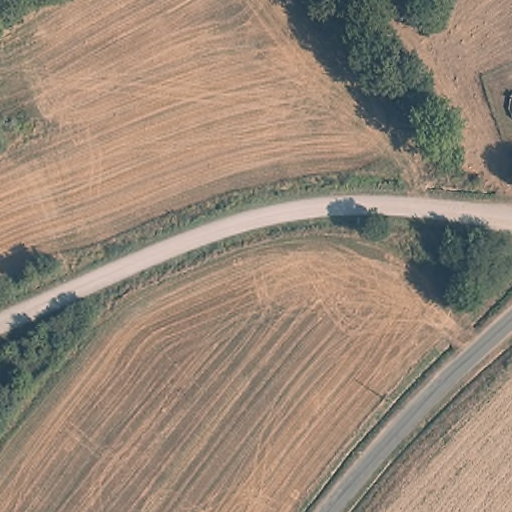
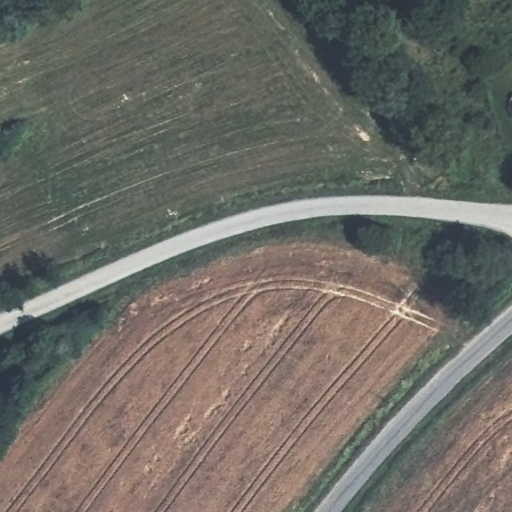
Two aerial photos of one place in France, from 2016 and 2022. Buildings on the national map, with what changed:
[]

